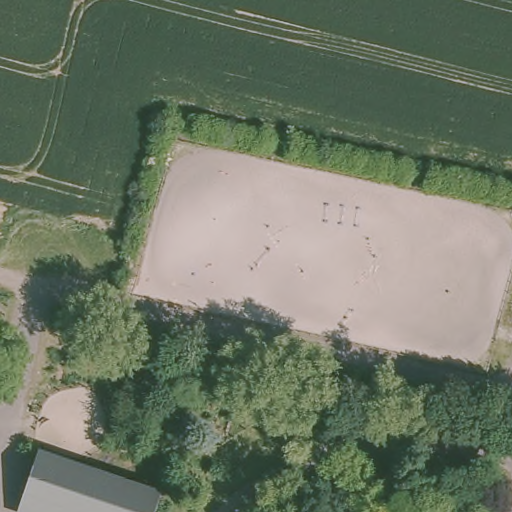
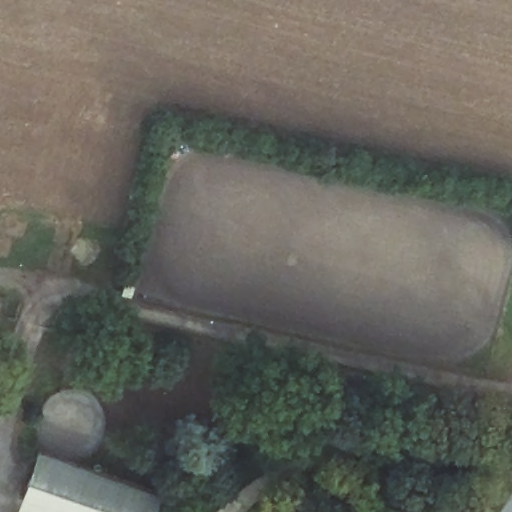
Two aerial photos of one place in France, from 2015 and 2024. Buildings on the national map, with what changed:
unchanged [(71,512),(28,498),(46,447),(159,488),(164,490),(157,512),(71,512)]
unchanged [(71,512),(23,512),(28,498),(71,512)]

